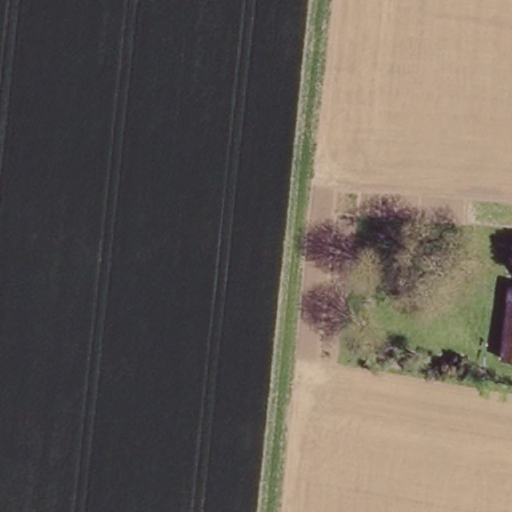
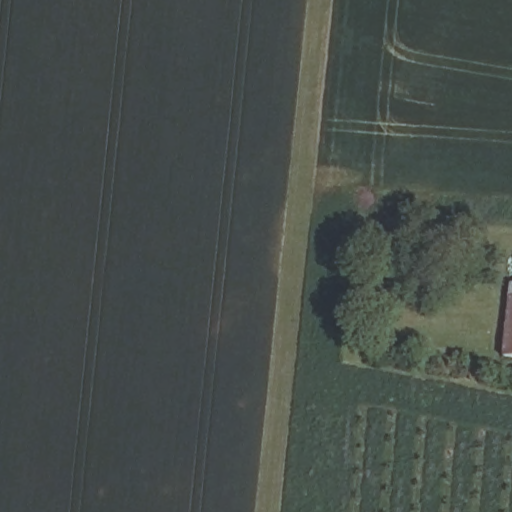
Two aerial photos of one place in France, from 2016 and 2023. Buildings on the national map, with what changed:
unchanged [(502,352),(511,277),(512,278),(512,353),(502,352)]

